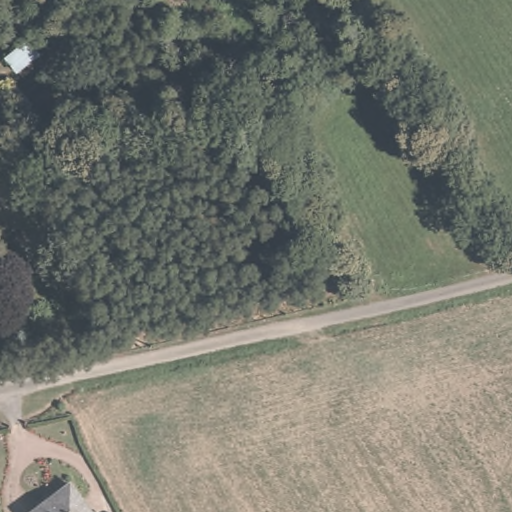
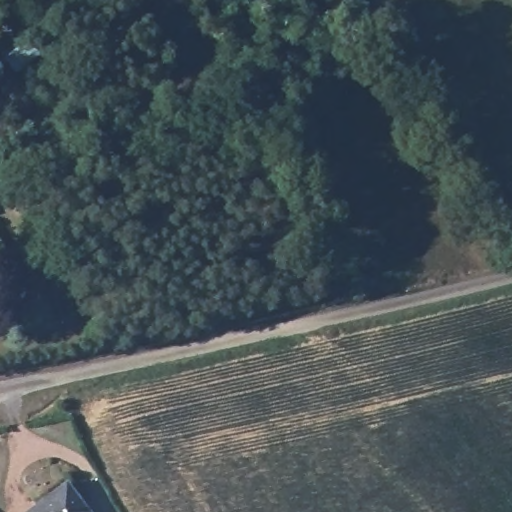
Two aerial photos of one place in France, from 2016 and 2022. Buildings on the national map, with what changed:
unchanged [(66,483),(89,512),(29,512),(66,483)]

